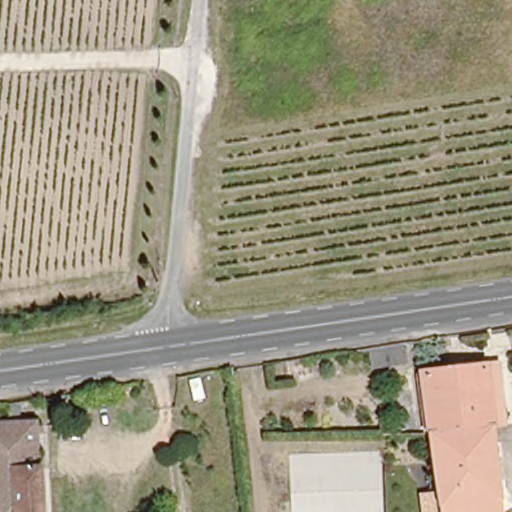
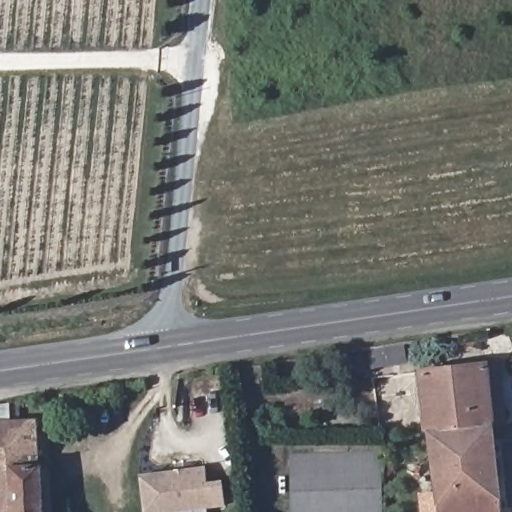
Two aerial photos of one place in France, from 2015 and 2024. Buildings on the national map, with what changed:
unchanged [(372,367),(370,350),(406,345),(408,362),(372,367)]
unchanged [(422,372),(486,366),(498,364),(506,423),(492,425),(492,427),(502,512),(438,512),(429,433),(428,431),(422,372)]
unchanged [(37,413),(38,455),(40,457),(43,512),(0,512),(0,415),(11,415),(37,413)]
unchanged [(379,447),(382,512),(293,512),(291,449),(379,447)]
new [(206,482),(221,481),(224,503),(154,512),(142,512),(137,475),(204,466),(206,482)]

